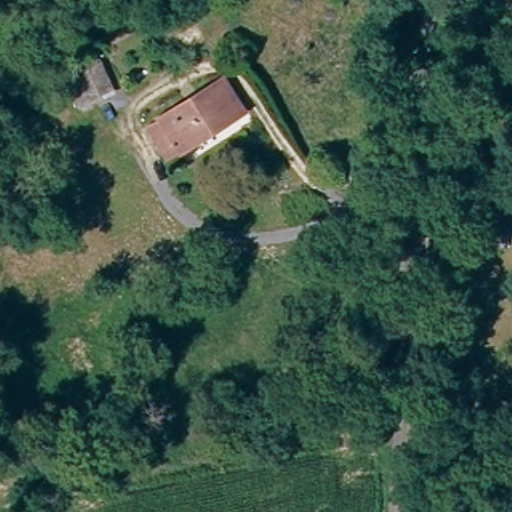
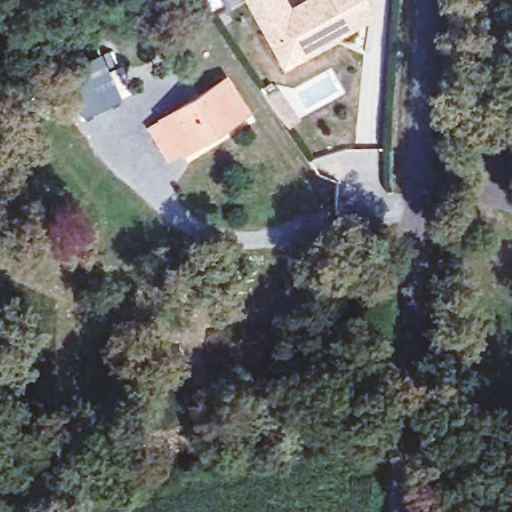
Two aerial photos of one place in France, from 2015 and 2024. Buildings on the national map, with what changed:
new [(281,66),(243,0),(287,0),(289,5),(299,0),(364,0),(372,13),(281,66)]
unchanged [(100,106),(67,124),(46,85),(78,66),(100,106)]
unchanged [(217,81),(241,116),(176,157),(155,123),(217,81)]
unchanged [(491,110),(512,107),(512,139),(496,141),(491,110)]

